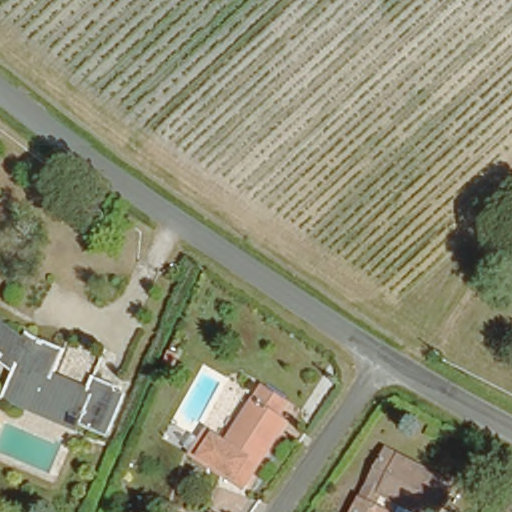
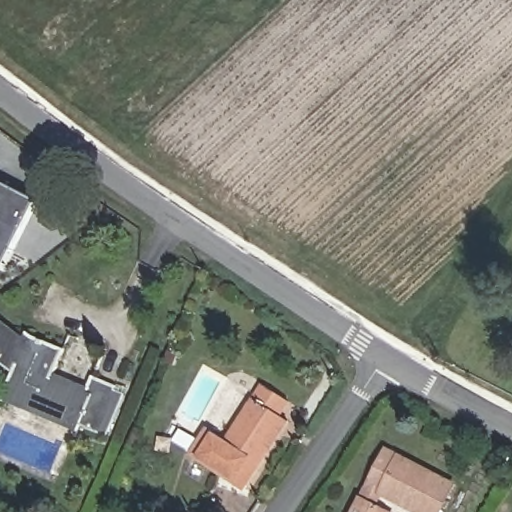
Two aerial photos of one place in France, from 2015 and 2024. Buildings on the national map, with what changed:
new [(5,267),(0,264),(0,180),(39,200),(5,267)]
unchanged [(81,390),(90,371),(112,380),(110,385),(118,388),(101,430),(24,395),(20,403),(0,393),(0,391),(8,374),(12,365),(0,356),(0,321),(2,320),(21,336),(28,331),(60,346),(49,375),(81,390)]
unchanged [(204,435),(223,447),(252,399),(273,412),(275,414),(268,425),(276,430),(238,491),(189,457),(204,435)]
unchanged [(455,488),(442,512),(419,512),(383,491),(375,505),(385,512),(353,512),(361,499),(387,450),(455,488)]

